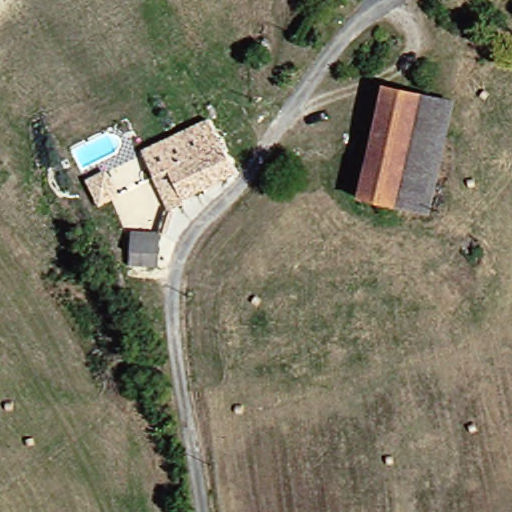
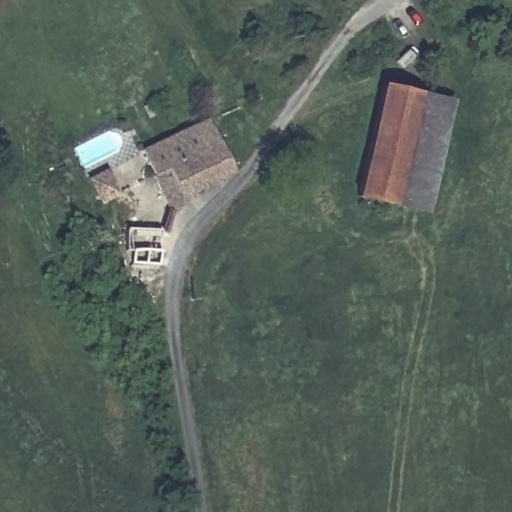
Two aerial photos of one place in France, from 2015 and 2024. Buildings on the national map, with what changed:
unchanged [(334,14),(320,0),(352,0),(334,14)]
unchanged [(392,85),(426,95),(403,204),(365,194),(392,85)]
unchanged [(460,102),(437,209),(403,204),(426,95),(442,98),(460,102)]
unchanged [(227,145),(235,140),(248,166),(189,196),(192,200),(177,209),(162,177),(148,149),(215,119),(227,145)]
unchanged [(162,232),(161,266),(132,268),(136,231),(162,232)]

